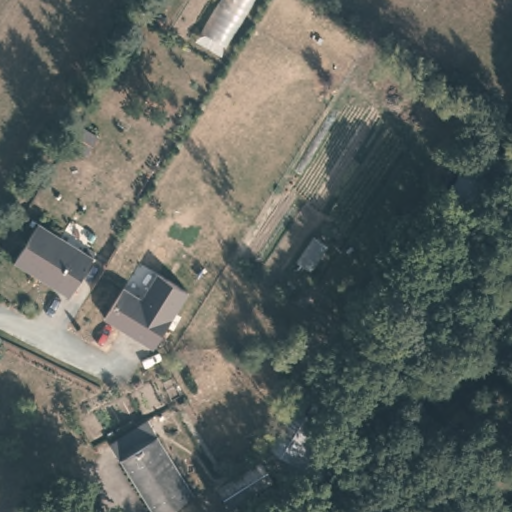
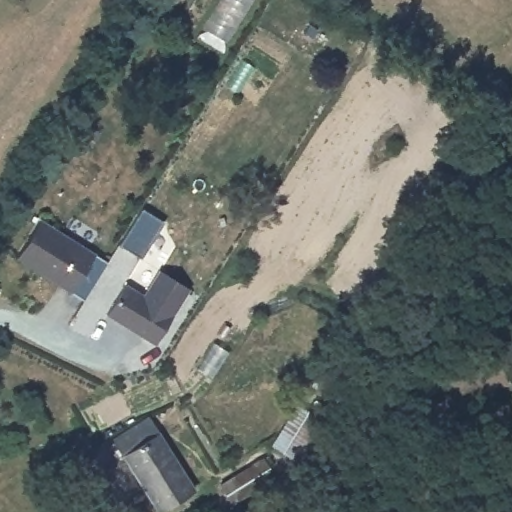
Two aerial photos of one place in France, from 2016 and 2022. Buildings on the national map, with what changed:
new [(139,258),(118,245),(139,209),(162,222),(139,258)]
unchanged [(38,219),(94,253),(69,291),(14,257),(38,219)]
unchanged [(109,312),(128,282),(146,293),(162,268),(192,287),(158,342),(144,333),(126,322),(109,312)]
unchanged [(274,442),(294,403),(319,416),(324,407),(333,412),(307,460),(274,442)]
unchanged [(128,455),(129,455),(119,440),(151,418),(161,435),(163,434),(197,486),(163,508),(128,455)]
unchanged [(263,461),(274,478),(236,503),(225,486),(263,461)]

